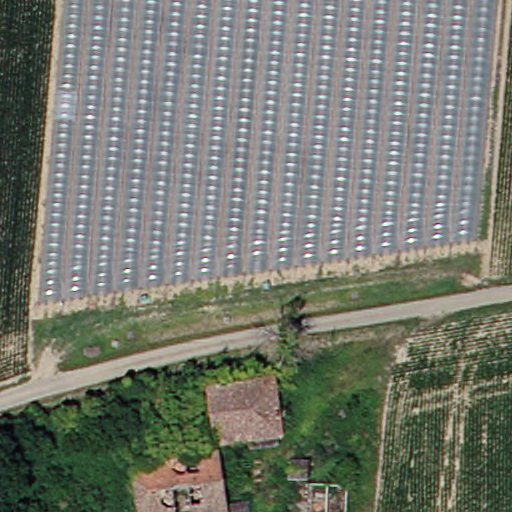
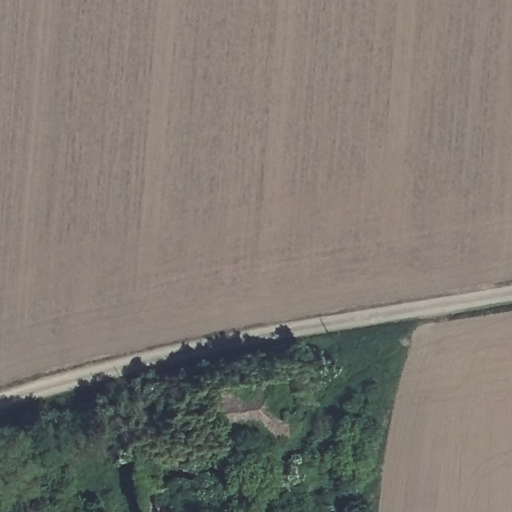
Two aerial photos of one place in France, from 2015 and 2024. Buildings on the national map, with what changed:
demolished [(31,302),(56,0),(487,0),(470,237),(31,302)]
unchanged [(191,391),(262,379),(272,437),(205,447),(191,391)]
unchanged [(115,461),(207,455),(211,504),(234,502),(234,512),(121,512),(115,461)]
unchanged [(280,457),(298,460),(296,472),(278,470),(280,457)]
unchanged [(275,480),(336,481),(336,512),(274,512),(275,480)]

